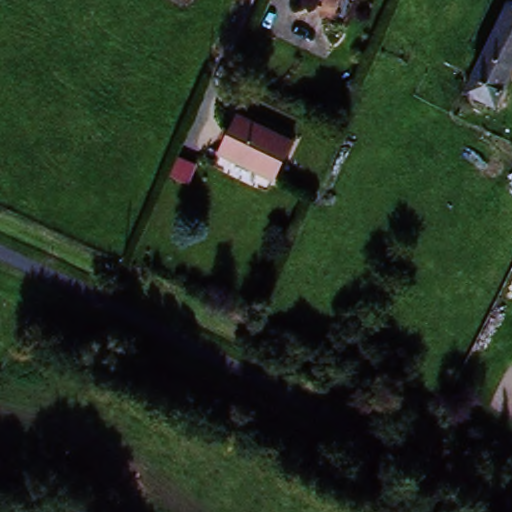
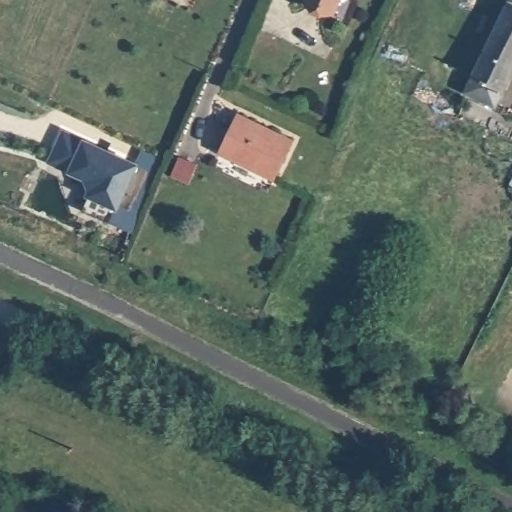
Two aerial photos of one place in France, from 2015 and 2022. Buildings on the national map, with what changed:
unchanged [(328,0),(337,0),(335,4),(328,0)]
unchanged [(512,11),(512,73),(495,109),(482,101),(488,86),(480,83),(512,11)]
unchanged [(276,177),(222,149),(240,113),(295,140),(276,177)]
new [(140,166),(111,223),(82,210),(89,198),(85,197),(89,191),(85,182),(69,174),(48,162),(62,130),(140,166)]

